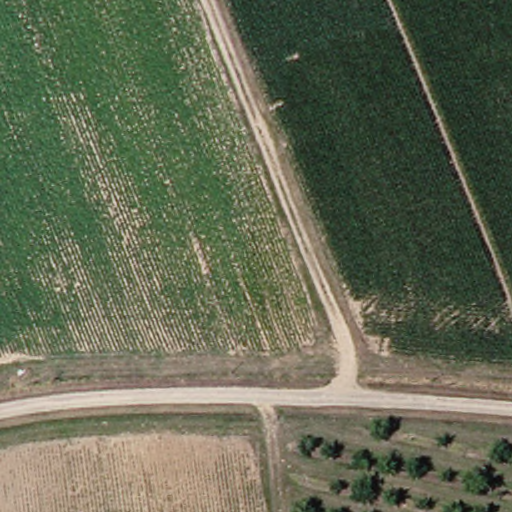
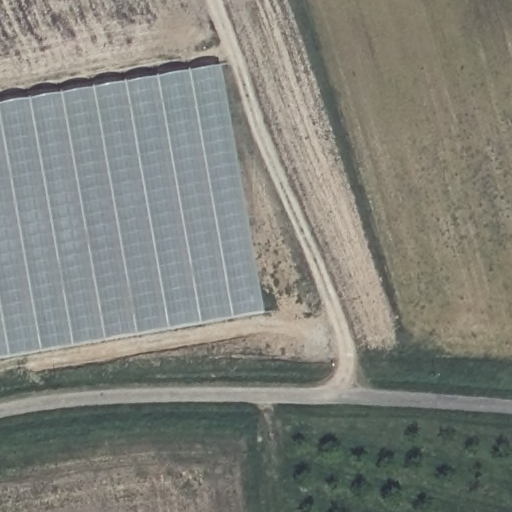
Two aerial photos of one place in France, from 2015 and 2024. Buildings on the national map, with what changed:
new [(261,313),(0,358),(0,105),(217,67),(261,313)]

